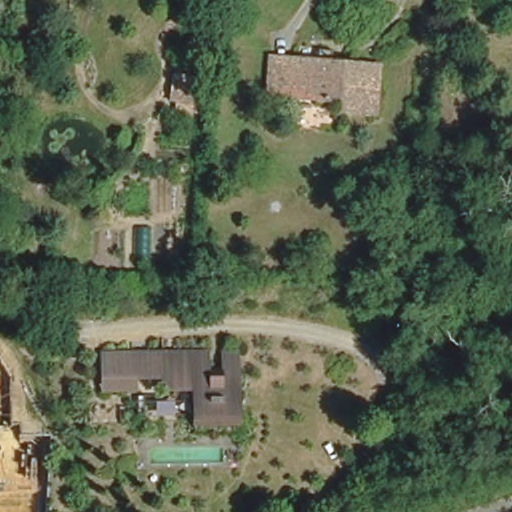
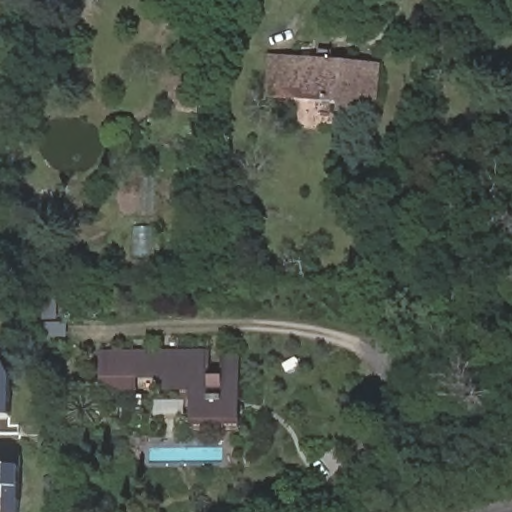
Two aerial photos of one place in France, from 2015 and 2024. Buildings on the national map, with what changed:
unchanged [(277,82),(279,68),(280,56),(299,58),(324,61),(325,49),(339,50),(338,63),(384,68),(379,117),(349,113),(350,103),(295,97),(276,95),(277,82)]
unchanged [(170,110),(173,99),(168,98),(170,75),(202,80),(196,116),(170,110)]
unchanged [(101,325),(60,325),(60,293),(102,293),(101,325)]
unchanged [(91,357),(226,354),(228,429),(182,430),(181,395),(152,395),(152,384),(123,385),(123,395),(93,396),(91,357)]
new [(0,418),(0,362),(9,374),(9,418),(0,418)]
new [(18,469),(17,512),(0,512),(0,468),(18,469)]

